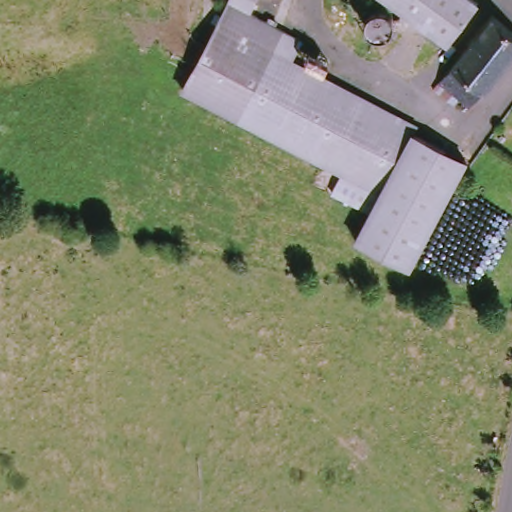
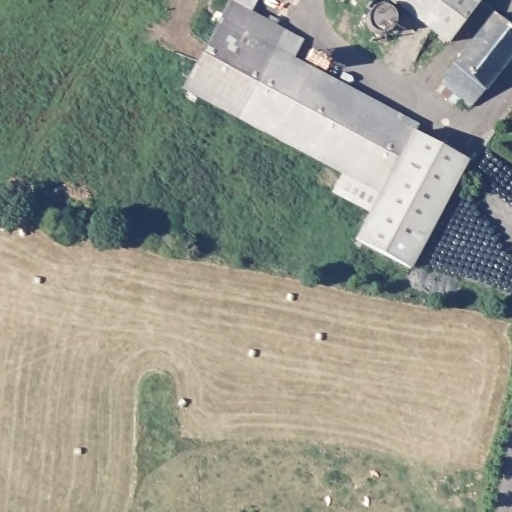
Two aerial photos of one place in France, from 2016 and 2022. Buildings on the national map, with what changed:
unchanged [(256,14),(309,41),(301,59),(421,124),(417,131),(474,160),(418,269),(363,239),(386,196),(188,88),(236,0),(264,0),(256,14)]
unchanged [(481,4),(449,45),(389,0),(476,0),(481,4)]
unchanged [(372,27),(370,23),(369,19),(371,15),(374,11),(378,10),(380,9),(384,10),(388,12),(391,15),(392,20),(391,24),(389,27),(385,30),(381,31),(379,31),(375,30),(372,27)]
unchanged [(474,107),(456,93),(452,98),(439,88),(496,15),(512,29),(512,60),(474,107)]
unchanged [(313,61),(318,53),(336,62),(332,70),(313,61)]

